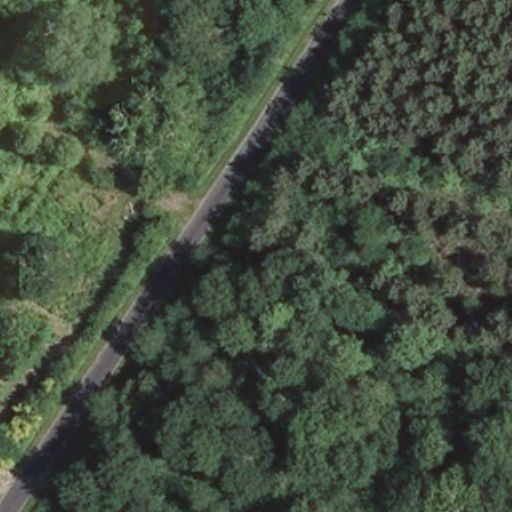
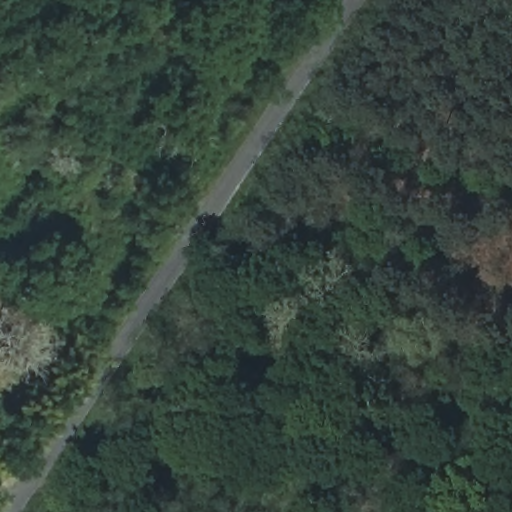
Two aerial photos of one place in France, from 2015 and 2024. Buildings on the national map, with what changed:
unchanged [(191,250),(211,220),(241,232),(228,262),(191,250)]

